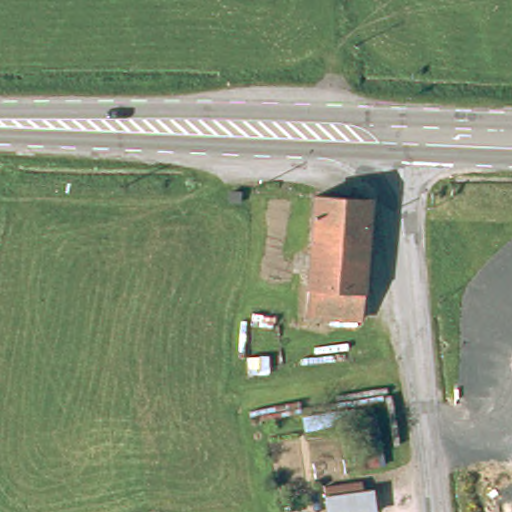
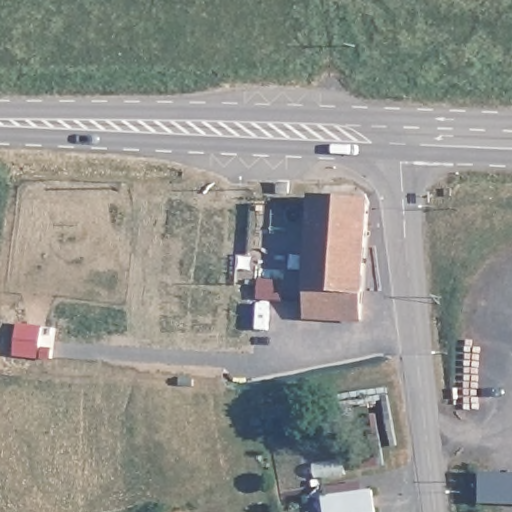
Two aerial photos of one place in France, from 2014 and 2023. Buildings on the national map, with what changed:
unchanged [(370,202),(364,324),(312,322),(320,200),(370,202)]
new [(512,477),(512,507),(480,505),(481,476),(512,477)]
unchanged [(375,495),(378,512),(330,512),(328,502),(375,495)]

